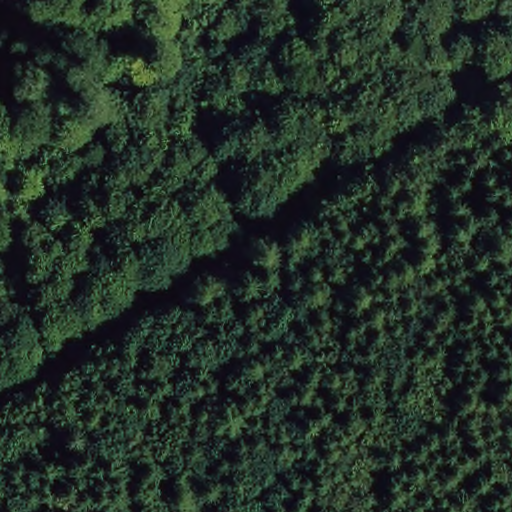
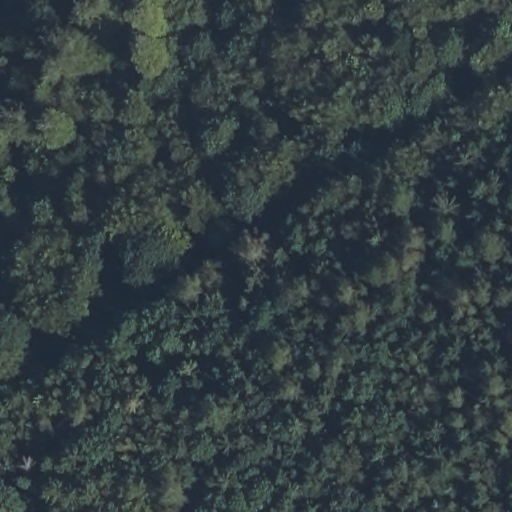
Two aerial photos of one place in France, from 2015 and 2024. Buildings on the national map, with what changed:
[]

